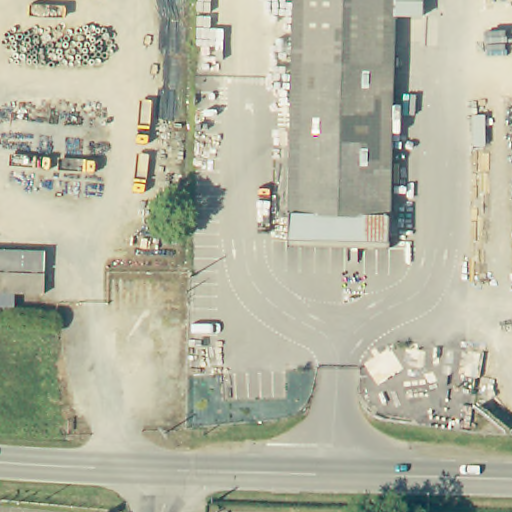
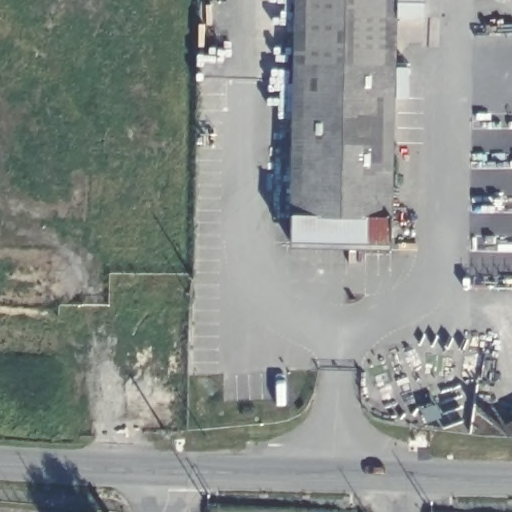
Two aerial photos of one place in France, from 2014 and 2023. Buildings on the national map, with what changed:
unchanged [(391,248),(349,247),(349,242),(293,241),(297,0),(396,0),(396,16),(391,248)]
unchanged [(396,16),(396,0),(424,0),(424,17),(396,16)]
demolished [(46,252),(44,294),(16,294),(16,310),(0,309),(0,249),(46,252)]

